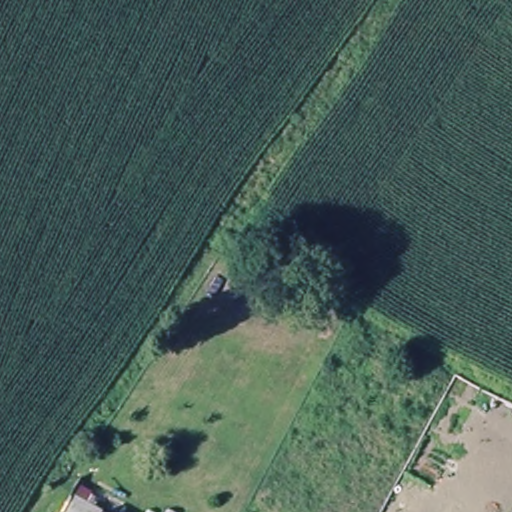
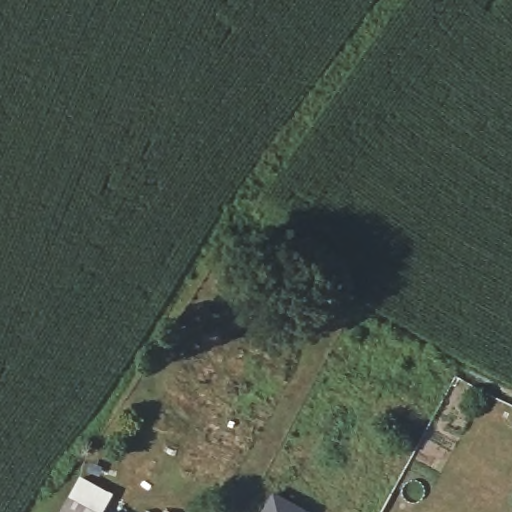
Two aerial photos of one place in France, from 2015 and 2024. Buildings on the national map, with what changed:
unchanged [(128,505),(124,512),(63,512),(81,480),(128,505)]
new [(314,511),(314,512),(261,512),(273,490),(314,511)]
unchanged [(124,512),(128,505),(139,512),(124,512)]

